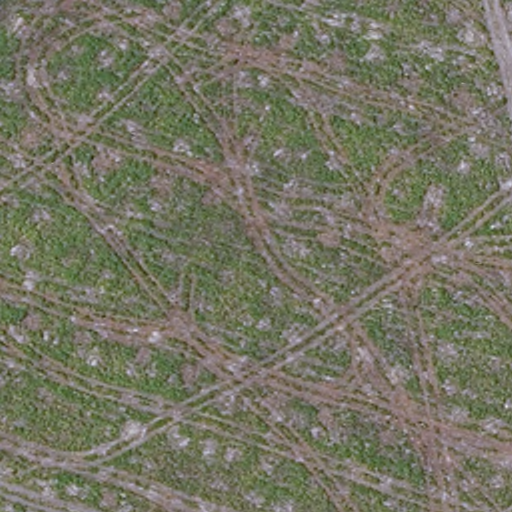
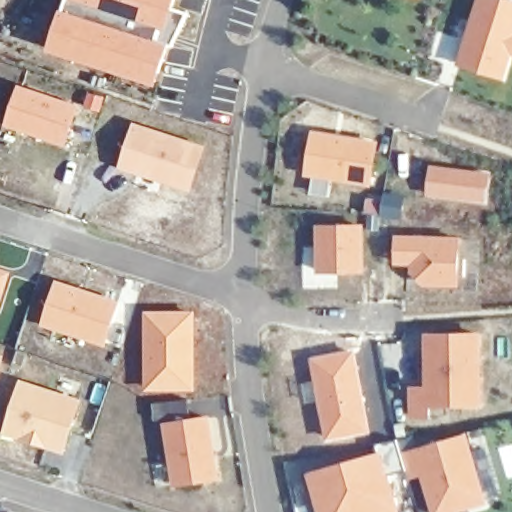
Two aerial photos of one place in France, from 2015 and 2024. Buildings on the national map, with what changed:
new [(79,0),(104,7),(167,29),(165,39),(60,8),(63,0),(79,0)]
new [(104,7),(79,0),(174,0),(167,29),(104,7)]
new [(512,63),(506,81),(456,65),(477,0),(510,0),(512,1),(512,63)]
new [(60,8),(165,39),(168,41),(154,84),(47,49),(60,8)]
new [(80,105),(68,148),(5,127),(19,85),(80,105)]
new [(206,146),(194,193),(120,169),(134,123),(206,146)]
new [(378,141),(373,187),(304,177),(311,130),(378,141)]
new [(365,224),(367,274),(317,274),(316,225),(365,224)]
new [(460,237),(461,288),(424,288),(411,274),(411,265),(395,265),(395,235),(460,237)]
new [(12,273),(0,310),(0,268),(12,273)]
new [(122,302),(107,347),(41,326),(57,280),(122,302)]
new [(191,314),(194,387),(147,389),(147,372),(151,372),(150,316),(191,314)]
new [(481,332),(484,407),(432,408),(432,418),(410,418),(410,386),(426,385),(425,333),(481,332)]
new [(313,379),(309,357),(355,348),(371,431),(323,439),(316,402),(301,404),(298,383),(313,379)]
new [(5,356),(0,374),(0,354),(5,356)]
new [(84,399),(66,454),(2,436),(21,378),(84,399)]
new [(191,399),(195,417),(211,415),(221,483),(173,489),(163,422),(155,423),(153,404),(191,399)]
new [(489,503),(462,512),(432,512),(421,477),(411,479),(408,468),(391,474),(401,512),(319,512),(307,474),(377,452),(375,445),(398,439),(403,453),(468,433),(489,503)]

